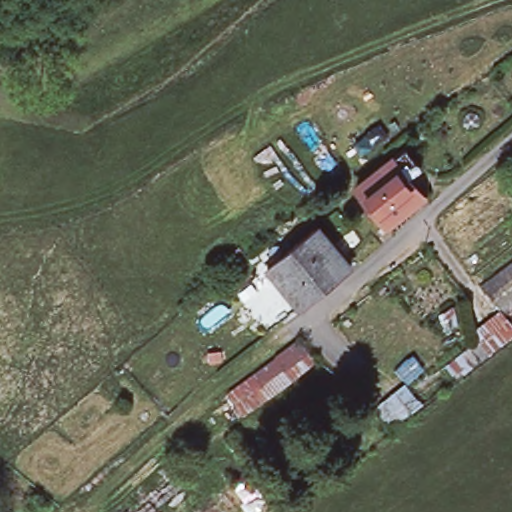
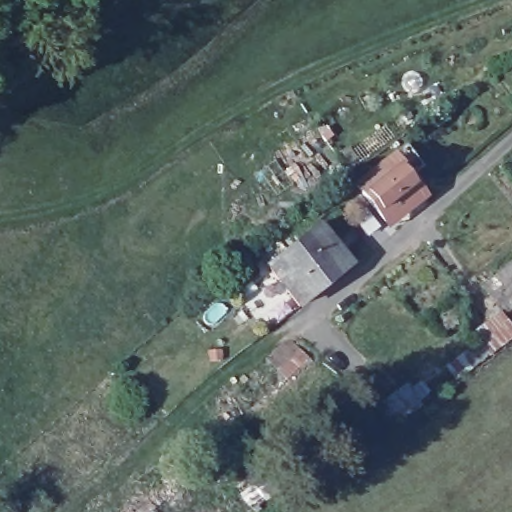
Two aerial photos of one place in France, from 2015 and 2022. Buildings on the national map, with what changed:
unchanged [(403,155),(418,174),(404,184),(417,200),(381,227),(354,192),(353,191),(402,153),(403,155)]
unchanged [(259,261),(253,255),(273,238),(279,246),(283,251),(314,226),(346,265),(295,307),(259,261)]
unchanged [(358,241),(367,232),(378,244),(368,254),(355,265),(344,253),(358,241)]
unchanged [(512,256),(512,302),(499,311),(497,313),(474,283),(512,256)]
unchanged [(475,343),(469,337),(497,313),(499,311),(504,317),(512,327),(512,337),(457,385),(444,369),(475,343)]
unchanged [(504,317),(512,312),(512,327),(504,317)]
unchanged [(241,419),(225,395),(295,341),(312,366),(241,419)]
unchanged [(399,388),(414,410),(396,423),(380,402),(399,388)]
unchanged [(233,485),(264,470),(274,493),(247,508),(233,485)]

